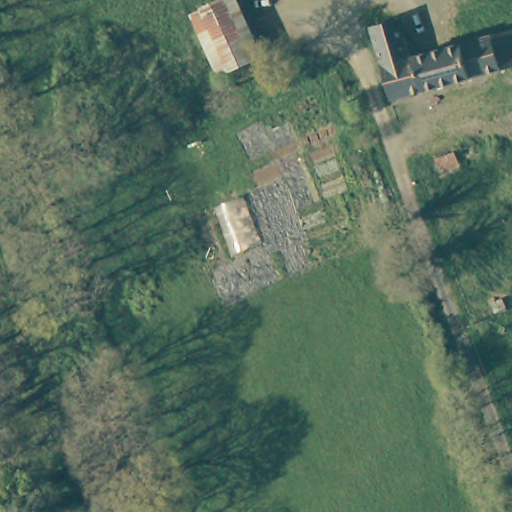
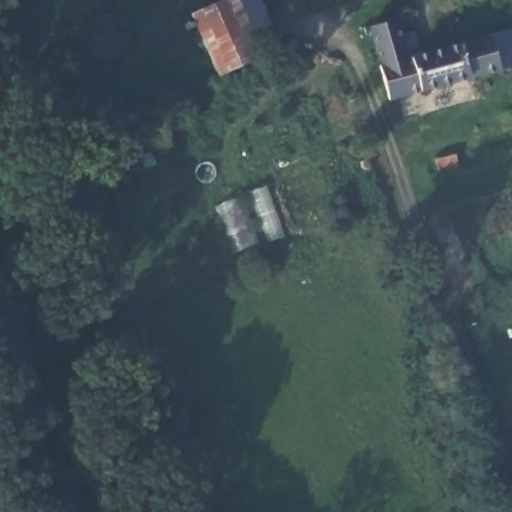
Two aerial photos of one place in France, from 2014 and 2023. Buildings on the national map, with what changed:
unchanged [(215,66),(188,5),(198,0),(241,0),(259,42),(215,66)]
unchanged [(512,32),(512,70),(387,105),(365,26),(367,25),(364,15),(375,11),(379,22),(392,18),(405,64),(512,32)]

